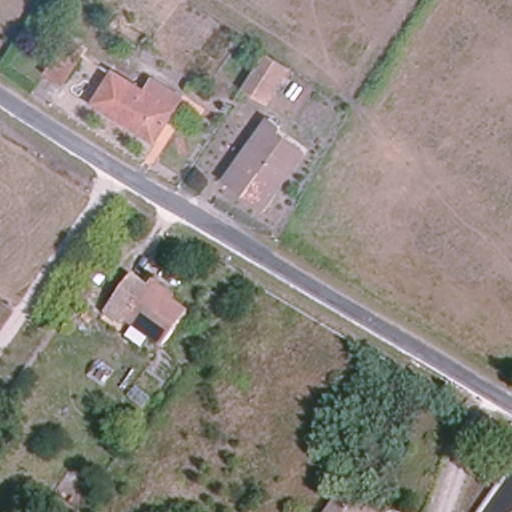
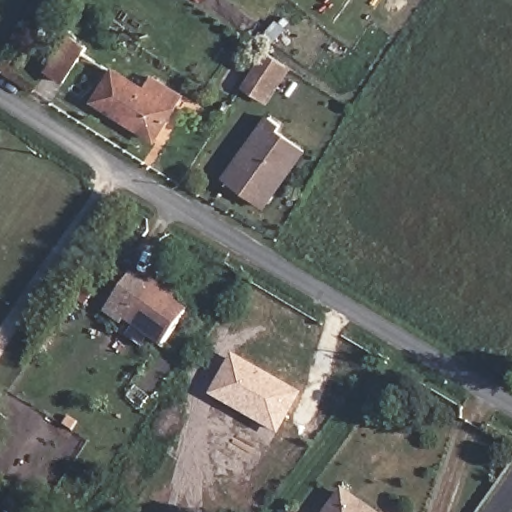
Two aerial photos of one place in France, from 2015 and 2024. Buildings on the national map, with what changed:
unchanged [(67,87),(46,70),(66,37),(92,50),(67,87)]
unchanged [(284,72),(264,99),(243,82),(261,57),(284,72)]
unchanged [(156,143),(96,105),(116,73),(148,91),(156,79),(187,97),(156,143)]
unchanged [(263,211),(236,192),(246,177),(234,168),(265,123),(277,130),(272,139),(299,158),(263,211)]
unchanged [(166,343),(129,318),(124,325),(106,315),(131,280),(148,291),(154,285),(180,303),(176,310),(184,316),(166,343)]
new [(302,392),(279,436),(210,395),(233,353),(302,392)]
unchanged [(350,497),(372,512),(339,512),(350,497)]

